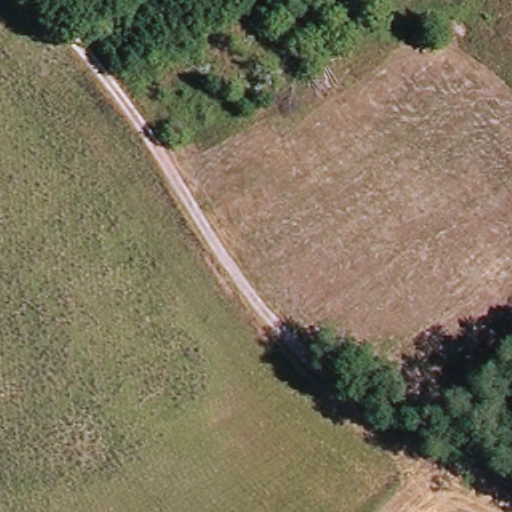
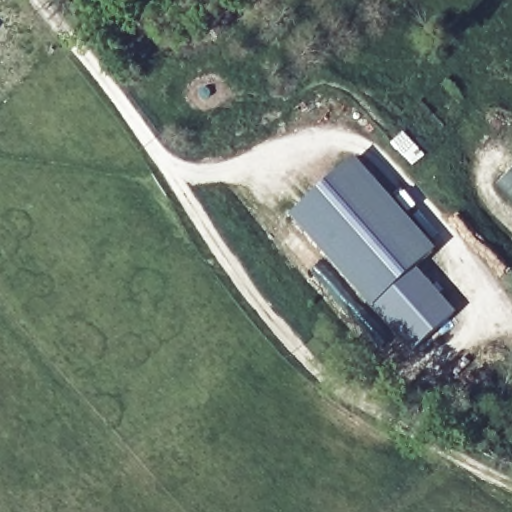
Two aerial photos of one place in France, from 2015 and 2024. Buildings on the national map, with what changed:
new [(436,252),(416,268),(455,313),(410,353),(372,308),(290,217),(354,160),(436,252)]
new [(512,169),(512,197),(498,182),(512,169)]

